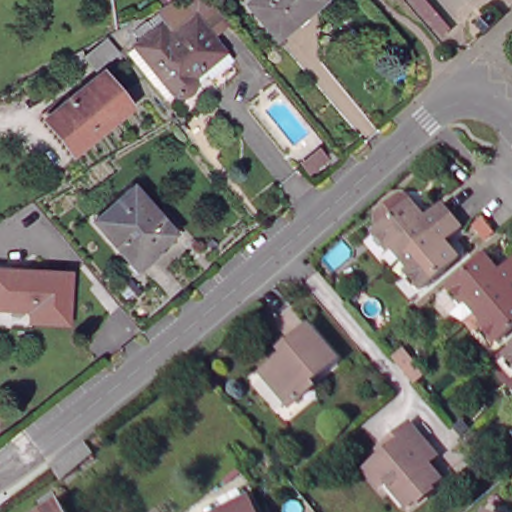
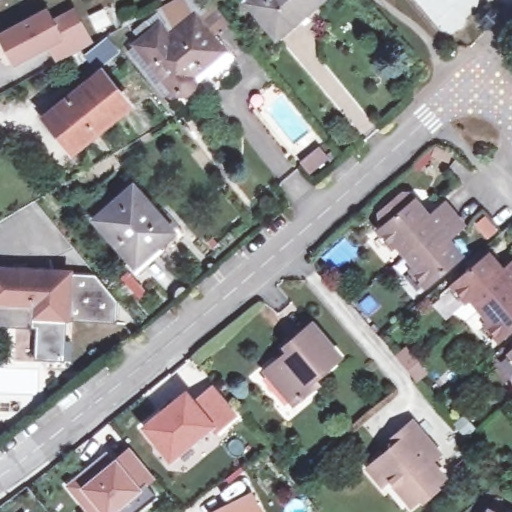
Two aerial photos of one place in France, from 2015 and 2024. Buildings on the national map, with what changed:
unchanged [(140,42),(134,32),(147,22),(149,24),(162,13),(159,10),(162,7),(166,6),(176,0),(211,0),(215,6),(218,9),(229,23),(230,24),(215,39),(224,50),(232,60),(210,78),(207,75),(200,82),(192,75),(191,76),(193,81),(193,82),(193,83),(193,84),(193,85),(193,86),(193,87),(192,87),(192,88),(191,89),(191,90),(190,91),(189,92),(188,92),(187,92),(186,93),(186,94),(185,94),(184,94),(183,94),(182,95),(181,95),(180,94),(178,94),(176,93),(173,92),(165,97),(128,52),(136,46),(140,42)]
unchanged [(275,37),(247,5),(253,0),(319,0),(308,10),(275,37)]
new [(46,12),(52,23),(73,12),(89,41),(58,57),(51,43),(16,62),(2,35),(46,12)]
unchanged [(117,57),(96,73),(86,61),(106,45),(117,57)]
unchanged [(127,112),(72,157),(45,122),(101,78),(127,112)]
unchanged [(94,220),(131,187),(171,232),(177,238),(139,271),(133,264),(94,220)]
unchanged [(409,192),(428,217),(445,204),(455,215),(464,225),(447,240),(461,257),(426,286),(411,270),(415,266),(406,255),(398,245),(395,249),(379,230),(386,224),(381,217),(381,212),(390,204),(403,192),(409,192)]
unchanged [(450,289),(460,280),(458,278),(493,250),(507,267),(512,263),(512,330),(505,336),(491,318),(485,324),(480,324),(473,316),(461,310),(449,295),(450,289)]
unchanged [(0,322),(0,267),(68,269),(66,319),(30,317),(30,323),(0,322)]
unchanged [(340,357),(317,376),(321,381),(295,402),(267,371),(294,349),(290,343),(313,323),(340,357)]
unchanged [(512,351),(512,353),(511,352),(512,351)]
new [(183,390),(192,400),(210,385),(232,412),(213,427),(209,422),(168,456),(142,424),(183,390)]
unchanged [(438,452),(430,460),(445,478),(413,505),(391,480),(385,484),(371,468),(388,453),(383,447),(391,440),(412,422),(438,452)]
demolished [(97,453),(65,478),(55,466),(77,450),(88,442),(97,453)]
new [(111,462),(130,447),(152,474),(145,481),(156,494),(134,512),(118,512),(113,506),(106,512),(91,512),(68,483),(105,453),(111,462)]
demolished [(43,504),(58,495),(69,512),(49,512),(43,504)]
unchanged [(258,497),(265,512),(228,512),(258,497)]

